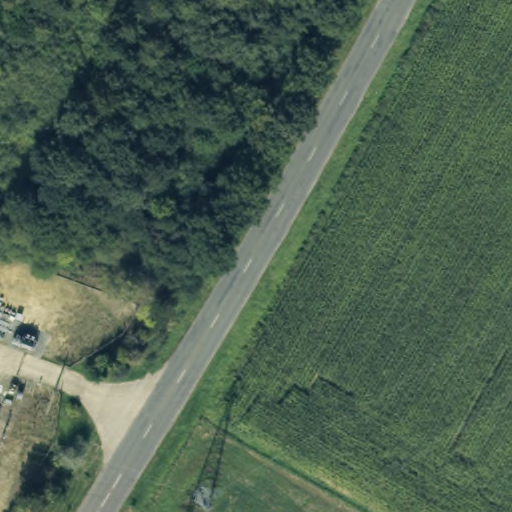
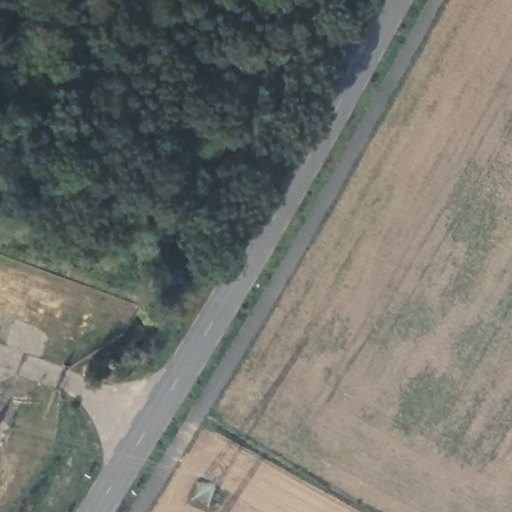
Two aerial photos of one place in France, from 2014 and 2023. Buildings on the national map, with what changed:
[]

